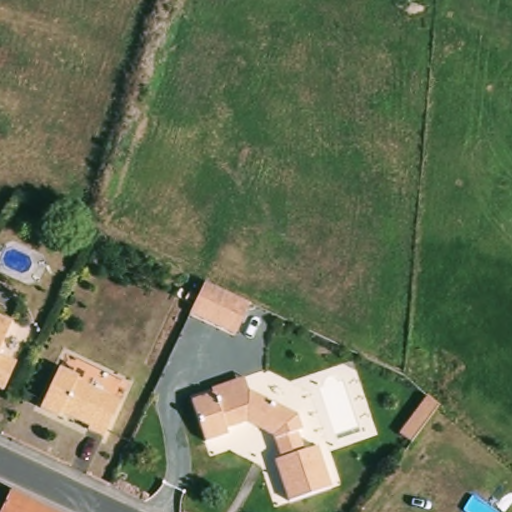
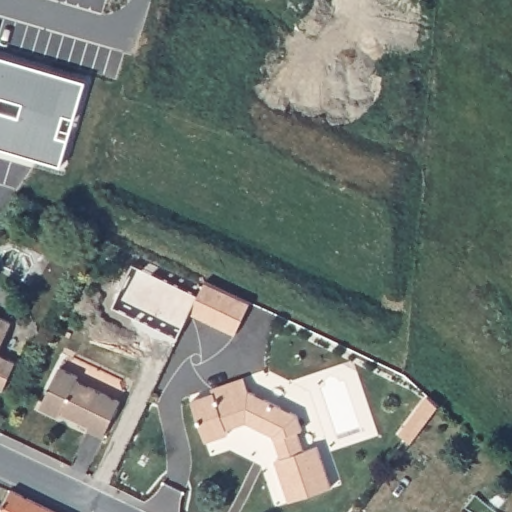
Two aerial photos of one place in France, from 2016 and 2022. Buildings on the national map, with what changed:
new [(60,161),(0,142),(0,51),(84,75),(60,161)]
unchanged [(206,281),(221,288),(251,303),(236,335),(191,313),(206,281)]
unchanged [(0,352),(0,316),(14,322),(0,352)]
unchanged [(5,391),(0,389),(0,355),(17,363),(5,391)]
unchanged [(75,377),(72,381),(116,402),(100,437),(84,430),(85,427),(57,413),(55,418),(37,408),(56,368),(75,377)]
unchanged [(192,401),(215,394),(217,403),(250,393),(277,406),(296,416),(302,431),(297,433),(303,452),(317,447),(331,488),(290,503),(275,461),(287,457),(280,438),(275,440),(273,436),(265,432),(246,424),(226,430),(228,435),(205,442),(192,401)]
unchanged [(422,395),(435,405),(406,443),(394,434),(422,395)]
unchanged [(17,491),(60,512),(7,512),(17,491)]

